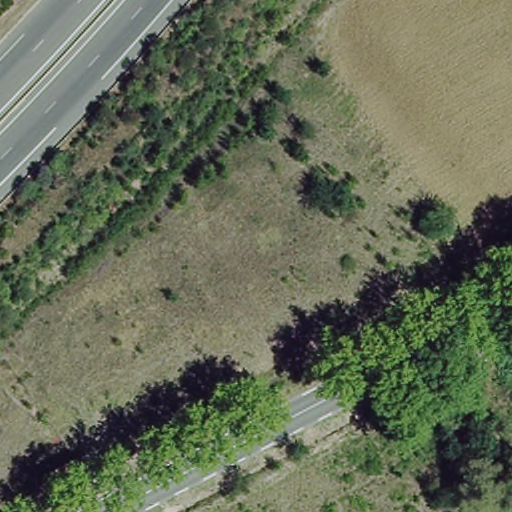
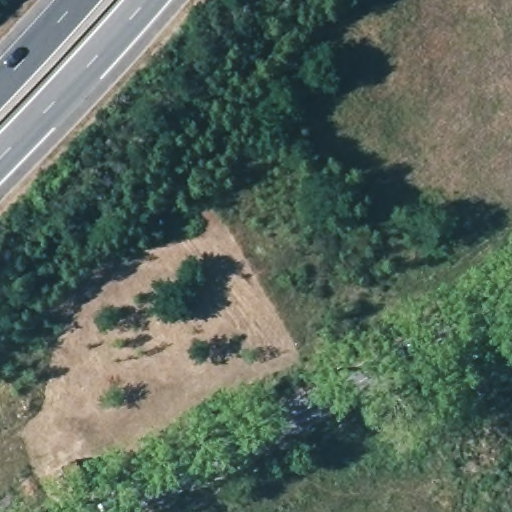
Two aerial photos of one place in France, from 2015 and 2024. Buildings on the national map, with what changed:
unchanged [(77,502),(66,481),(62,476),(87,465),(99,490),(77,502)]

